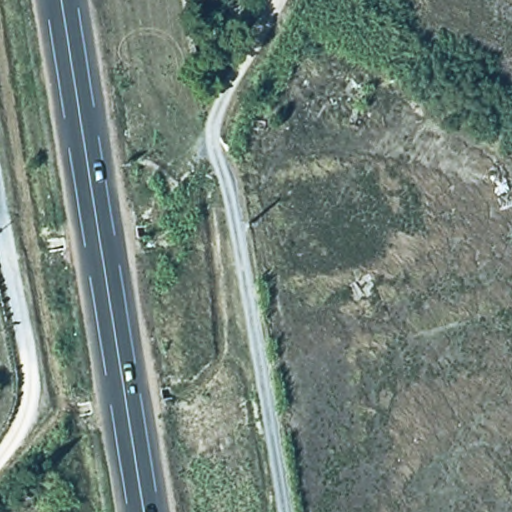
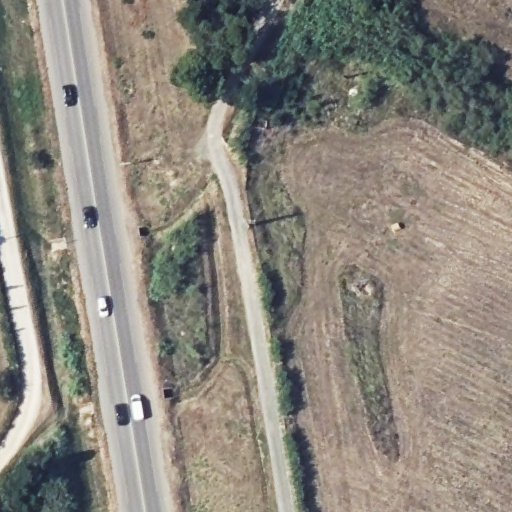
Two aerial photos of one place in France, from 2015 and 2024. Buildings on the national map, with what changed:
unchanged [(185,0),(206,0),(206,2),(185,2),(185,0)]

